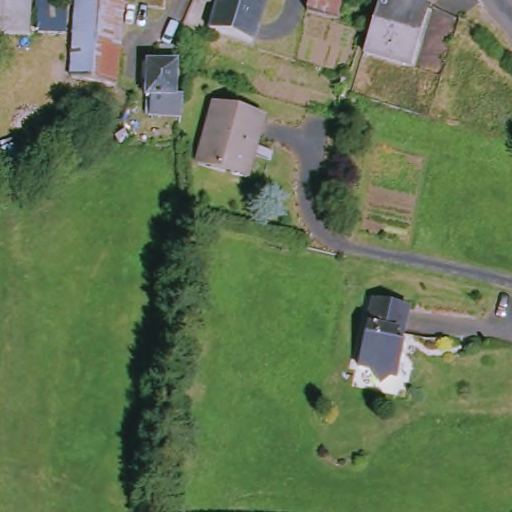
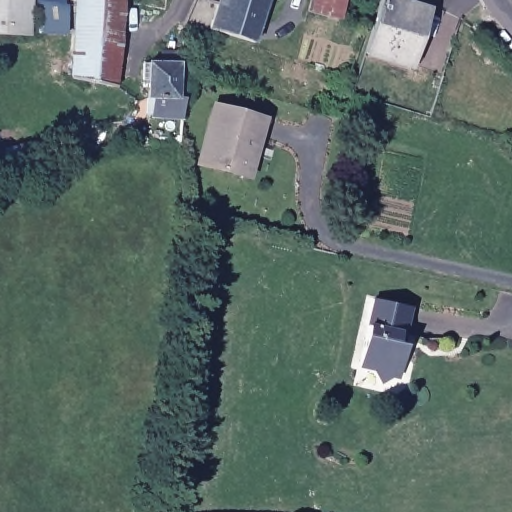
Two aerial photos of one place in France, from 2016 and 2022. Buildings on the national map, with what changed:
unchanged [(0,30),(0,0),(29,0),(28,31),(0,30)]
unchanged [(47,0),(74,1),(72,34),(36,31),(38,0),(47,0)]
unchanged [(113,87),(70,78),(72,34),(74,1),(74,0),(119,0),(115,81),(113,87)]
unchanged [(219,0),(210,29),(209,34),(184,25),(184,24),(196,0),(219,0)]
unchanged [(210,29),(219,0),(268,0),(255,44),(210,29)]
unchanged [(311,1),(311,0),(344,0),(337,21),(307,12),(311,1)]
unchanged [(377,0),(397,0),(424,9),(406,65),(361,52),(367,31),(377,0)]
unchanged [(145,63),(156,63),(156,50),(174,51),(172,99),(144,98),(144,81),(136,81),(139,64),(143,64),(145,63)]
unchanged [(249,173),(197,160),(211,101),(263,114),(249,173)]
unchanged [(409,361),(400,359),(397,374),(383,386),(375,369),(355,364),(368,303),(410,312),(402,348),(411,349),(409,361)]

